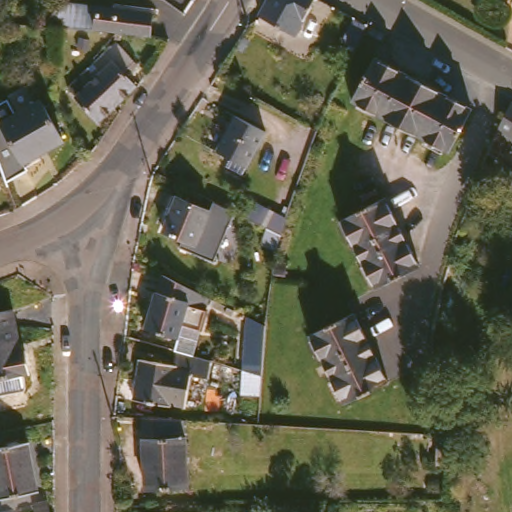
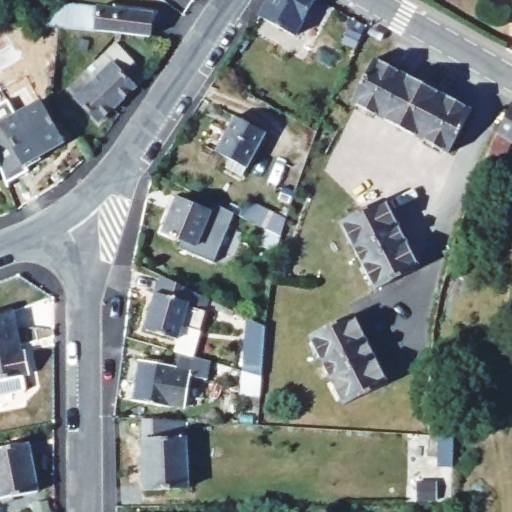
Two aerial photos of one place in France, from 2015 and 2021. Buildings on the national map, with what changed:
unchanged [(317,14),(312,13),(301,34),(265,14),(272,0),(319,0),(317,4),(321,7),(317,14)]
unchanged [(152,10),(156,10),(156,33),(125,31),(64,28),(49,28),(50,26),(66,6),(152,10)]
unchanged [(100,60),(120,41),(140,63),(130,73),(140,85),(120,101),(91,68),(100,60)]
unchanged [(478,114),(453,156),(358,99),(383,55),(478,114)]
unchanged [(91,68),(120,101),(101,118),(72,85),(91,68)]
unchanged [(65,141),(26,165),(2,125),(27,111),(43,102),(47,109),(65,141)]
unchanged [(500,156),(497,162),(491,158),(512,111),(512,154),(508,160),(500,156)]
unchanged [(270,132),(251,167),(239,160),(220,151),(240,115),(254,122),(270,132)]
unchanged [(215,213),(200,246),(169,232),(170,228),(171,224),(174,219),(175,214),(178,208),(172,206),(177,195),(215,213)]
unchanged [(390,196),(423,268),(378,289),(343,217),(390,196)]
unchanged [(258,246),(265,231),(235,215),(241,200),(242,198),(286,220),(279,237),(275,254),(258,246)]
unchanged [(194,286),(193,287),(195,288),(206,293),(203,305),(205,305),(199,329),(194,351),(177,346),(175,346),(178,336),(145,325),(160,271),(194,286)]
unchanged [(0,398),(0,317),(20,314),(26,357),(33,356),(36,378),(28,379),(30,394),(0,398)]
unchanged [(383,360),(394,383),(350,404),(318,335),(361,314),(383,360)]
unchanged [(262,328),(258,378),(237,372),(243,319),(262,328)]
unchanged [(194,351),(212,357),(209,377),(192,374),(186,406),(135,396),(142,356),(174,362),(177,346),(194,351)]
unchanged [(185,417),(185,437),(186,438),(190,438),(191,486),(145,487),(144,415),(185,417)]
unchanged [(435,423),(438,423),(438,436),(425,437),(423,423),(435,423)]
unchanged [(32,429),(41,479),(0,487),(0,435),(32,429)]

